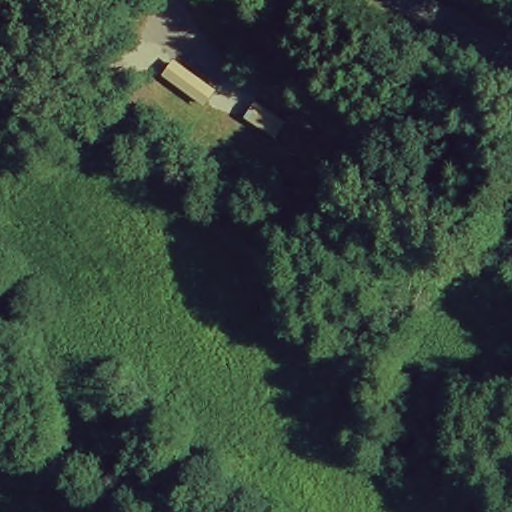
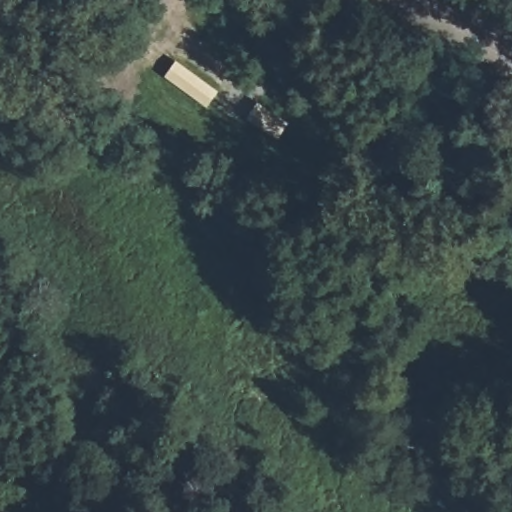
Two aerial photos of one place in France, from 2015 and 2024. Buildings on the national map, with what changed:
unchanged [(212,108),(167,80),(178,65),(223,91),(212,108)]

